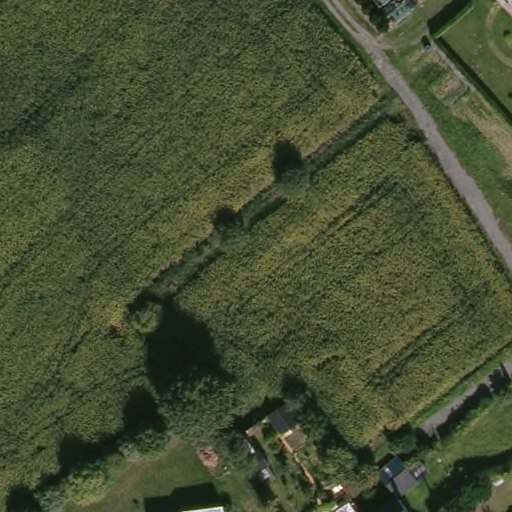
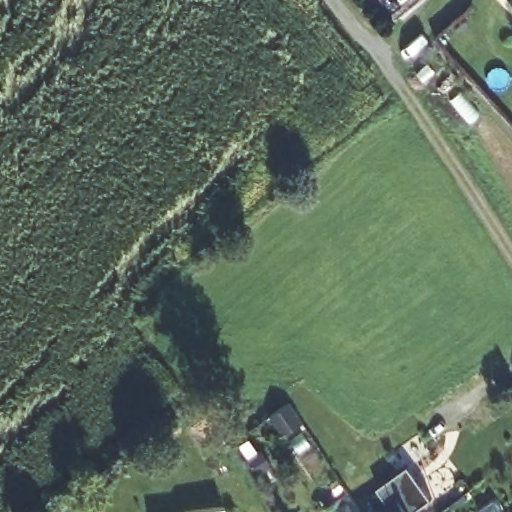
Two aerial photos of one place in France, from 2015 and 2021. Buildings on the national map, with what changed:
unchanged [(429,474),(420,483),(400,498),(389,486),(408,469),(418,460),(429,474)]
unchanged [(410,512),(377,512),(400,498),(410,512)]
unchanged [(226,512),(185,512),(226,509),(226,512)]

